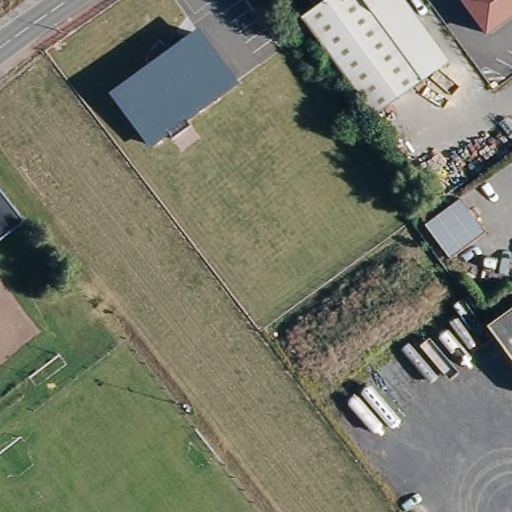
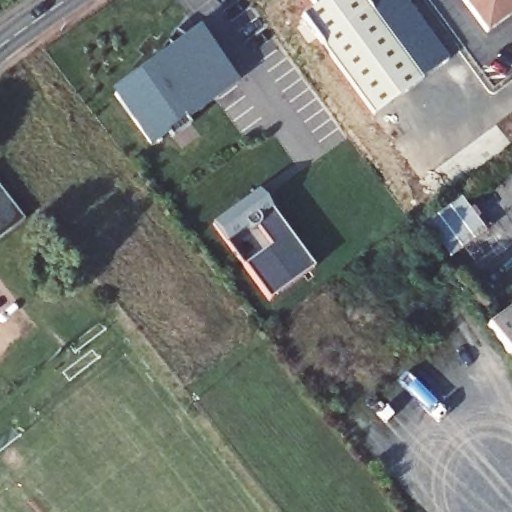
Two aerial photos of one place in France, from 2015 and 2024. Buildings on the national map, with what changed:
unchanged [(378,118),(306,20),(319,10),(312,0),(365,0),(426,82),(378,118)]
unchanged [(452,63),(426,82),(365,0),(405,0),(452,63)]
unchanged [(487,30),(464,0),(512,0),(512,11),(487,30)]
unchanged [(238,85),(188,121),(191,126),(171,139),(166,134),(150,145),(114,93),(199,29),(238,85)]
new [(257,227),(248,233),(245,229),(236,235),(234,232),(231,235),(234,239),(227,244),(213,225),(258,192),(311,268),(269,299),(246,267),(272,248),(257,227)]
unchanged [(22,223),(0,239),(0,193),(22,223)]
unchanged [(467,208),(471,205),(480,218),(477,221),(483,232),(449,256),(425,224),(460,198),(467,208)]
unchanged [(512,305),(512,365),(483,325),(512,305)]

